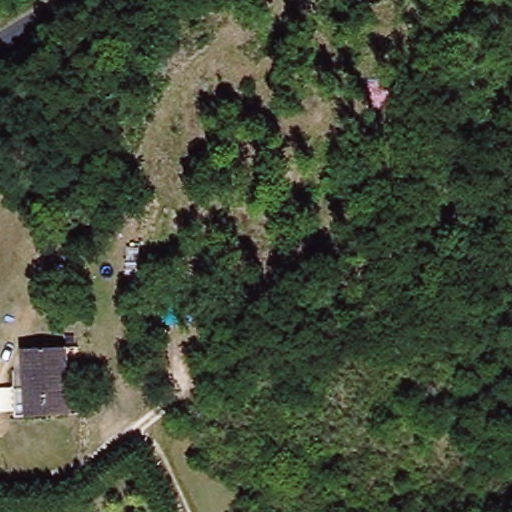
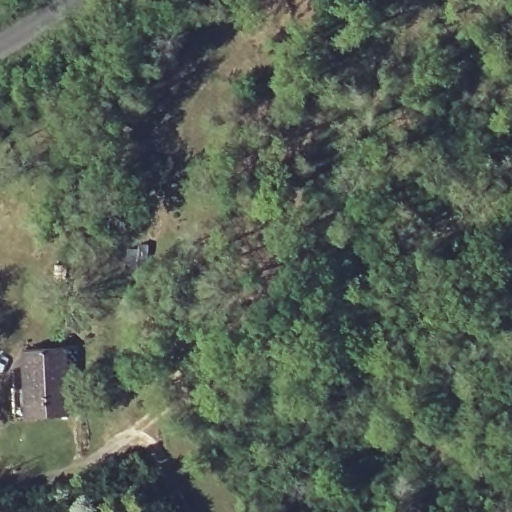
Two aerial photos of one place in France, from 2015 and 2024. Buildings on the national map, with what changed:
unchanged [(62,346),(74,411),(21,421),(13,376),(25,375),(21,355),(62,346)]

